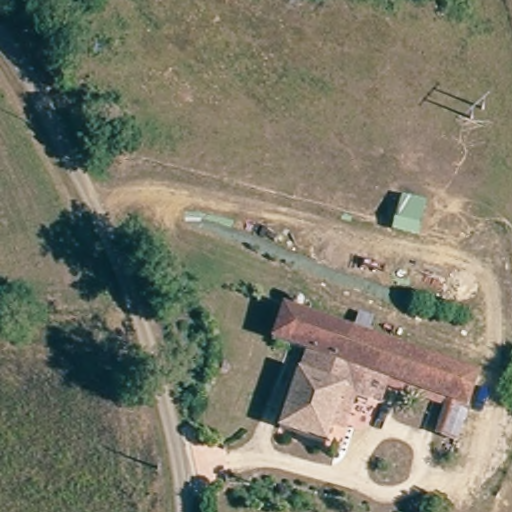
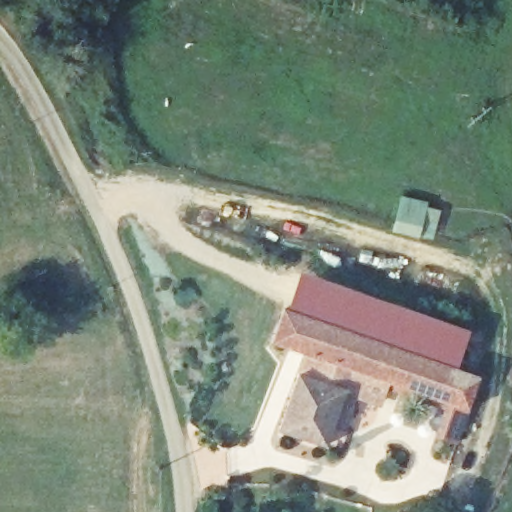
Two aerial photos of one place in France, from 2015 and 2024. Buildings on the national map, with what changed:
new [(400,194),(427,201),(426,205),(440,209),(432,239),(392,230),(400,194)]
new [(459,360),(442,355),(285,312),(301,270),(470,330),(459,360)]
unchanged [(329,420),(323,444),(275,431),(295,350),(239,335),(247,302),(442,355),(473,363),(459,427),(442,422),(448,393),(383,375),(377,393),(351,386),(341,422),(329,420)]

